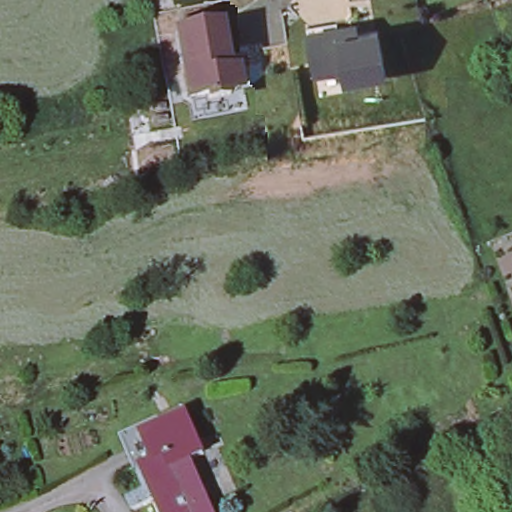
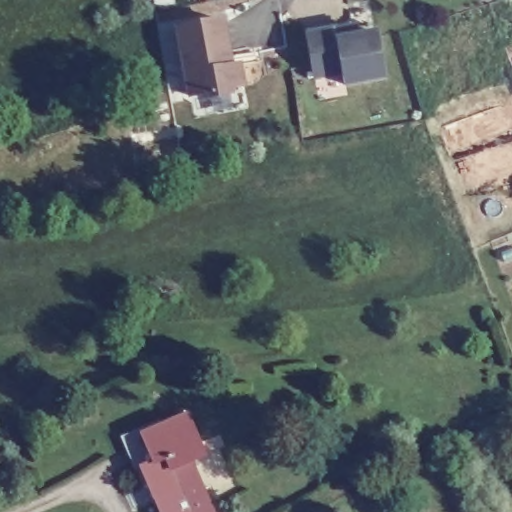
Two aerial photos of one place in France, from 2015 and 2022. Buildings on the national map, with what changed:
unchanged [(243,84),(230,87),(230,92),(210,97),(209,92),(191,96),(190,91),(177,28),(222,18),(231,64),(238,63),(241,76),(243,84)]
unchanged [(343,80),(341,68),(313,73),(309,52),(305,30),(335,25),(353,21),(355,31),(374,28),(375,32),(383,73),(343,80)]
unchanged [(202,451),(188,457),(212,512),(162,512),(128,434),(185,410),(202,451)]

